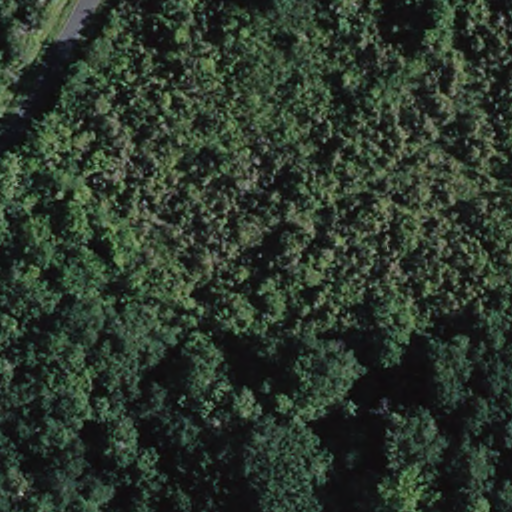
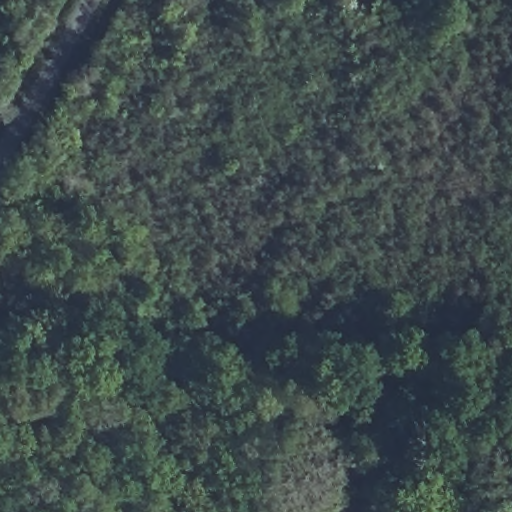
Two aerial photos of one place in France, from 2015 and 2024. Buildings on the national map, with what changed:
[]

